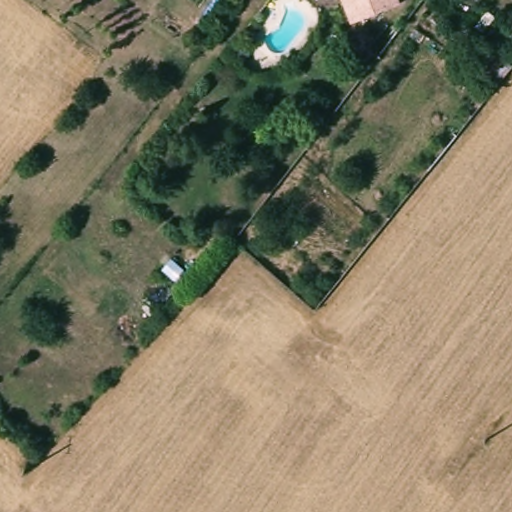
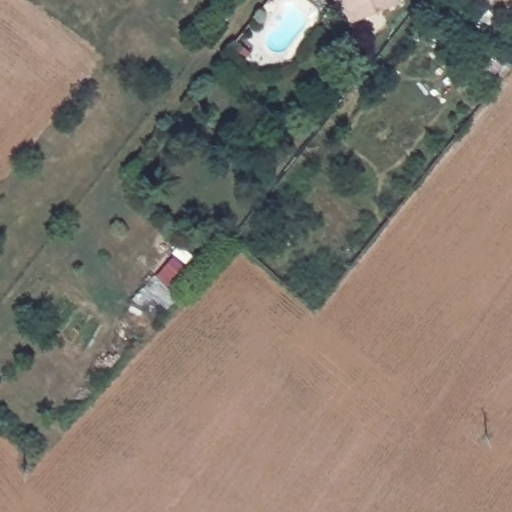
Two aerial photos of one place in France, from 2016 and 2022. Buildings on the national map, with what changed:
unchanged [(347,21),(339,0),(393,0),(394,4),(347,21)]

